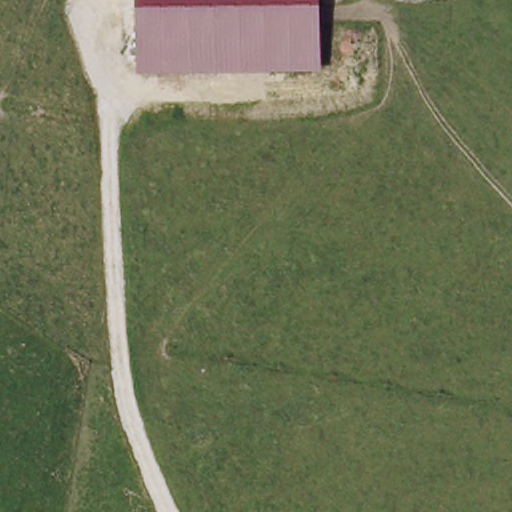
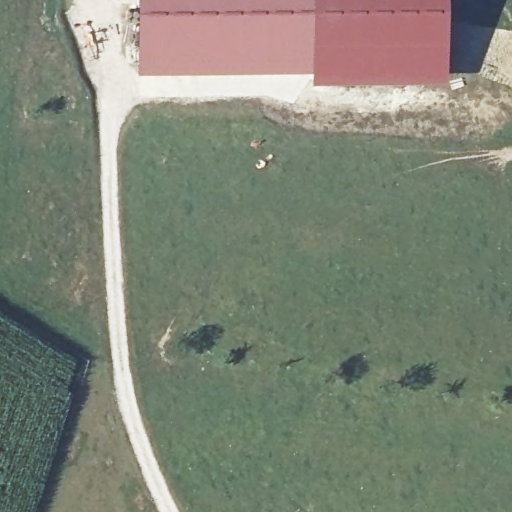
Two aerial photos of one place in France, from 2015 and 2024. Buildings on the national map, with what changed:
unchanged [(140,73),(140,0),(322,0),(325,70),(140,73)]
new [(322,0),(447,0),(448,80),(312,82),(312,70),(325,70),(322,0)]

